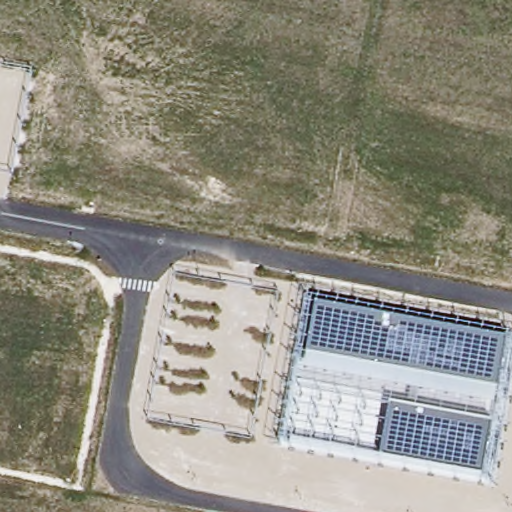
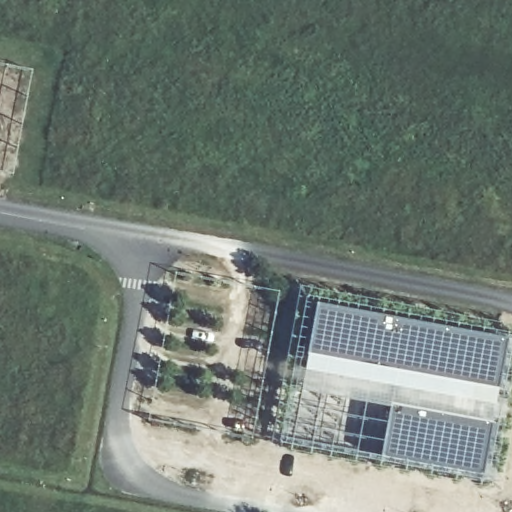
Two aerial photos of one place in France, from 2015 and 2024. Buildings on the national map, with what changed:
unchanged [(512,368),(492,484),(282,445),(307,295),(512,335),(512,368)]

